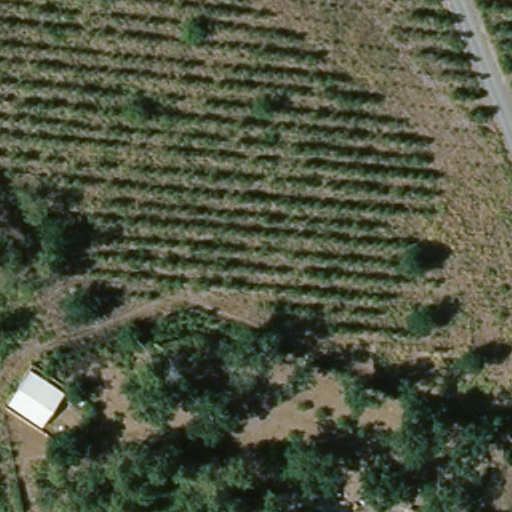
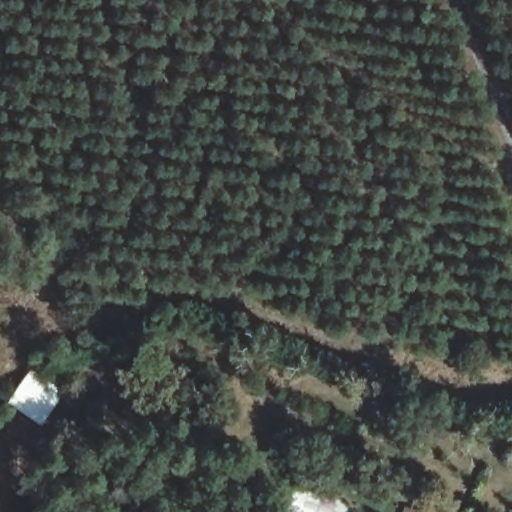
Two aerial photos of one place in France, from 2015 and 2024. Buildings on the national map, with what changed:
unchanged [(69,452),(0,412),(0,411),(26,363),(93,403),(69,452)]

